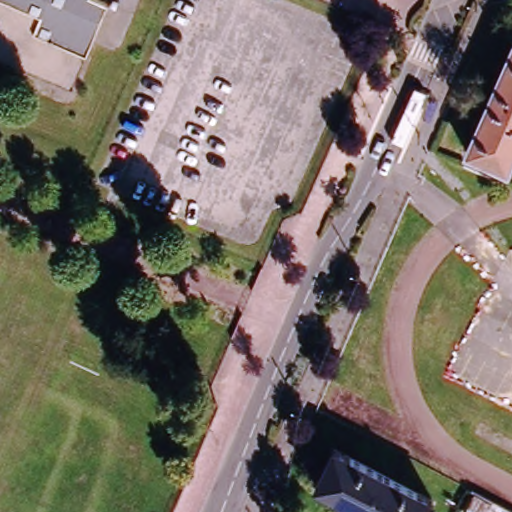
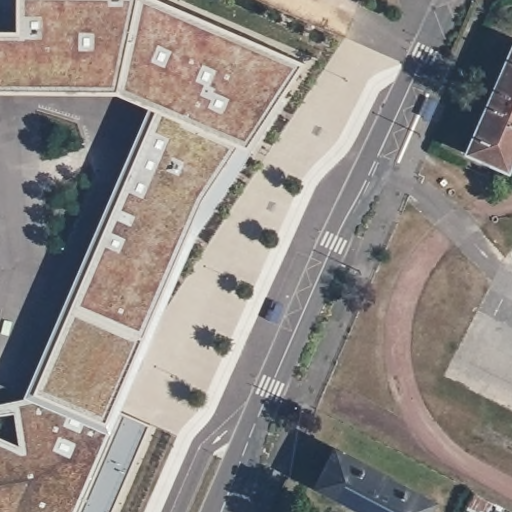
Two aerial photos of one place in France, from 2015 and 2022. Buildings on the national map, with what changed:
demolished [(106,0),(70,86),(0,56),(0,0),(105,0),(106,0)]
new [(21,395),(149,106),(116,92),(0,90),(0,0),(165,0),(302,60),(276,96),(282,99),(194,231),(117,409),(150,424),(110,512),(0,512),(0,436),(18,444),(13,410),(0,412),(0,403),(26,398),(21,395)]
unchanged [(512,46),(512,155),(505,169),(465,152),(512,46)]
unchanged [(433,500),(427,512),(367,512),(315,484),(334,447),(433,500)]

